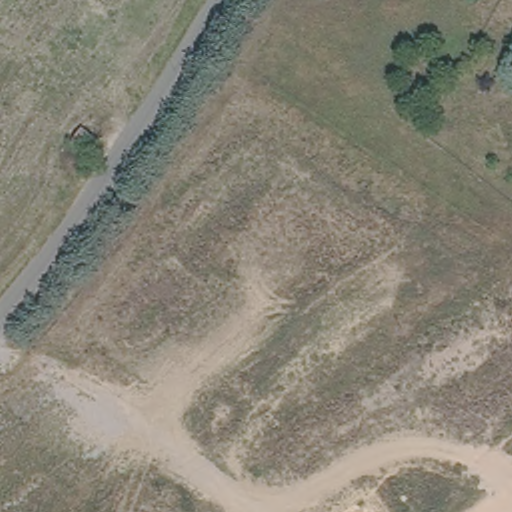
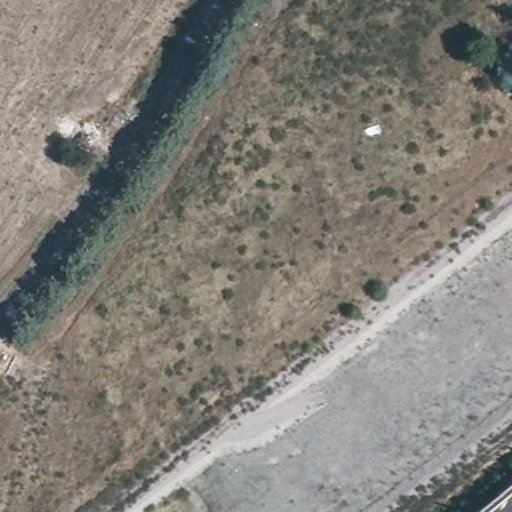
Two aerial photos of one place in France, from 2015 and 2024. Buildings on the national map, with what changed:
unchanged [(96,139),(87,153),(71,141),(80,128),(96,139)]

